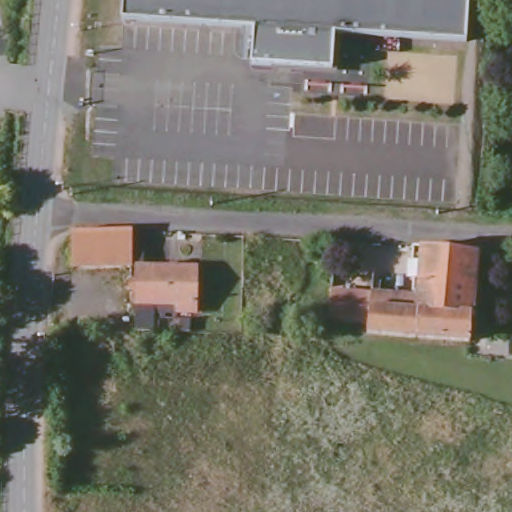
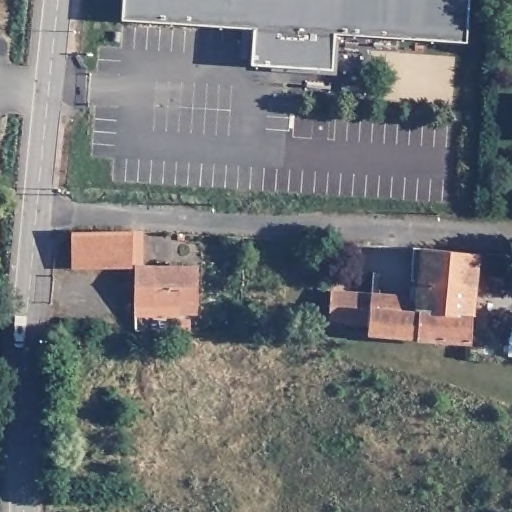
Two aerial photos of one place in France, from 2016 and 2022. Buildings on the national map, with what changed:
unchanged [(333,38),(331,74),(250,69),(252,33),(120,25),(122,0),(468,0),(465,46),(333,38)]
unchanged [(126,231),(125,262),(66,261),(70,228),(126,231)]
unchanged [(483,256),(475,344),(371,336),(372,325),(375,298),(422,302),(423,285),(412,284),(415,252),(483,256)]
unchanged [(191,265),(190,309),(171,308),(172,300),(131,298),(132,262),(191,265)]
unchanged [(335,296),(375,298),(372,325),(332,321),(335,296)]

